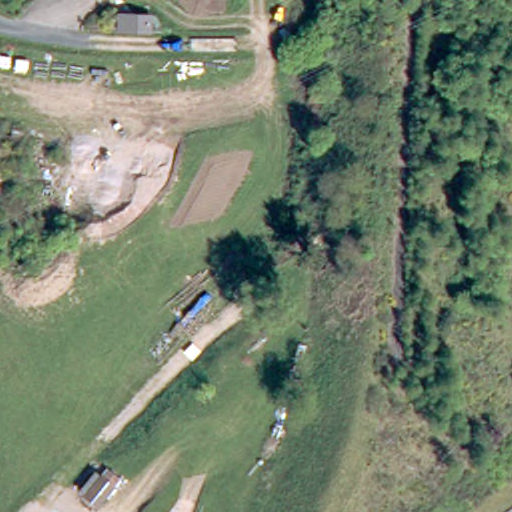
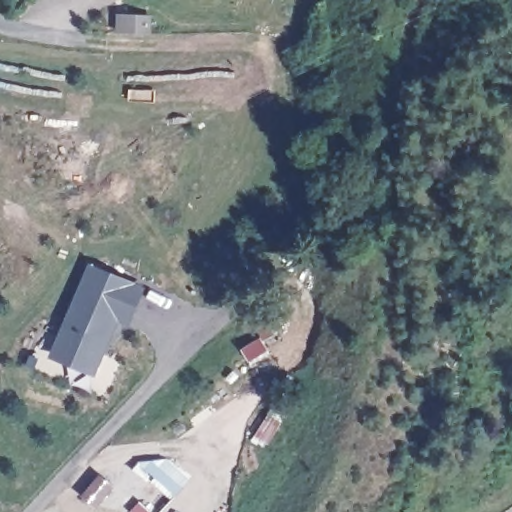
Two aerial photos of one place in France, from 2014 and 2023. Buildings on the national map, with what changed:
new [(89,265),(139,285),(125,317),(114,313),(92,368),(52,352),(89,265)]
new [(82,492),(96,477),(100,480),(102,479),(114,490),(98,508),(85,497),(87,496),(82,492)]

